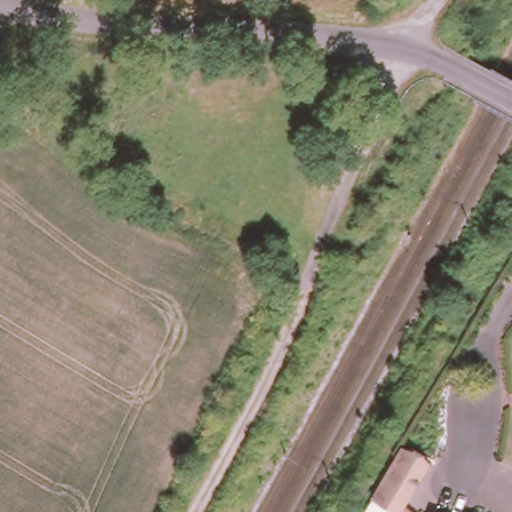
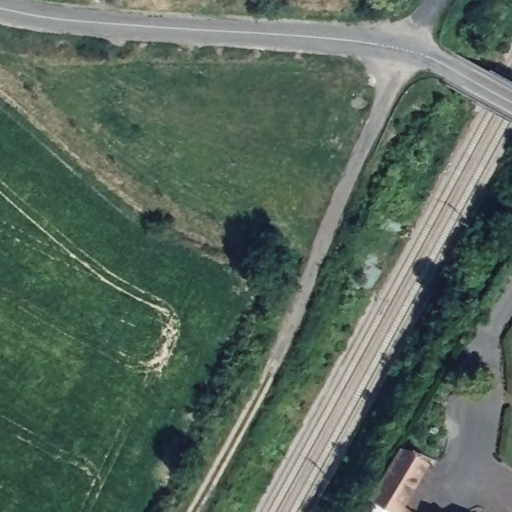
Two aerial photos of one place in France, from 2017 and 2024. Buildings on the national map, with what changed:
unchanged [(404,447),(429,463),(404,506),(411,512),(364,512),(404,447)]

